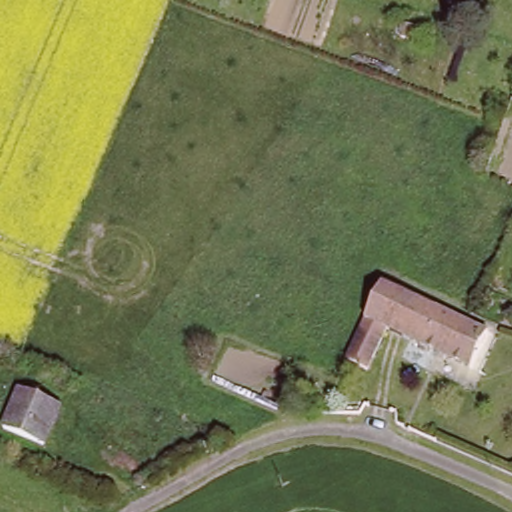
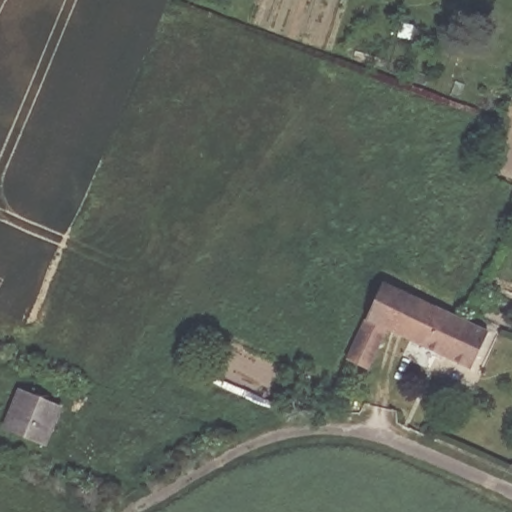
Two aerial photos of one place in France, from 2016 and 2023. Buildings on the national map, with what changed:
unchanged [(396,329),(379,366),(359,357),(374,319),(369,317),(384,279),(497,328),(478,366),(396,329)]
unchanged [(41,443),(3,426),(21,386),(59,403),(41,443)]

